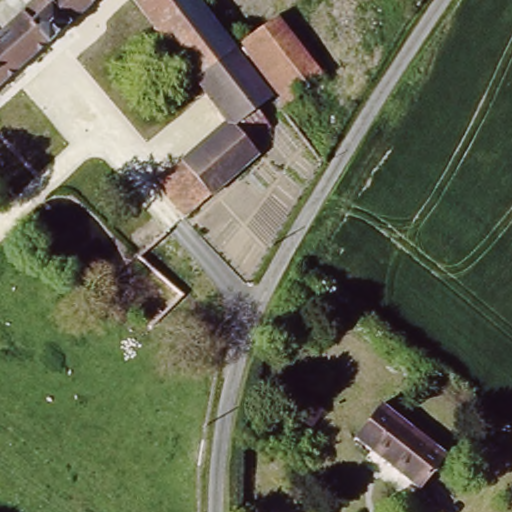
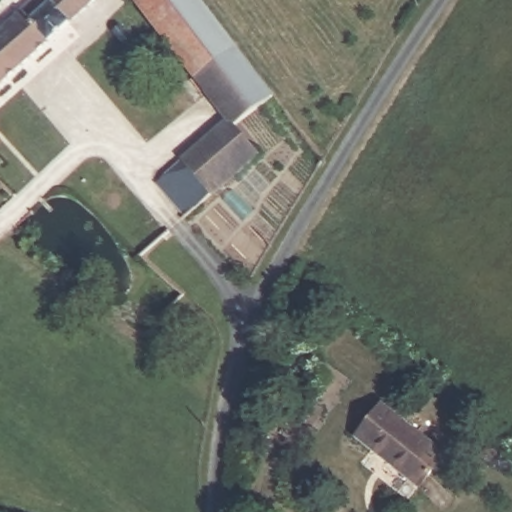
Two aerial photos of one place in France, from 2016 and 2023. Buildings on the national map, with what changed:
unchanged [(38,0),(47,0),(52,6),(60,0),(106,0),(0,94),(0,5),(5,0),(8,0),(23,15),(38,0)]
unchanged [(190,0),(270,86),(234,121),(131,3),(134,0),(190,0)]
demolished [(279,16),(322,76),(286,104),(240,42),(279,16)]
unchanged [(197,218),(175,180),(234,121),(260,151),(197,218)]
unchanged [(331,420),(305,448),(286,432),(312,403),(331,420)]
unchanged [(451,457),(422,489),(360,436),(389,404),(451,457)]

